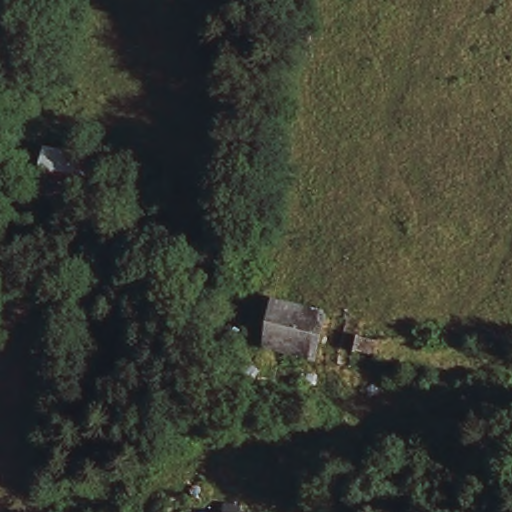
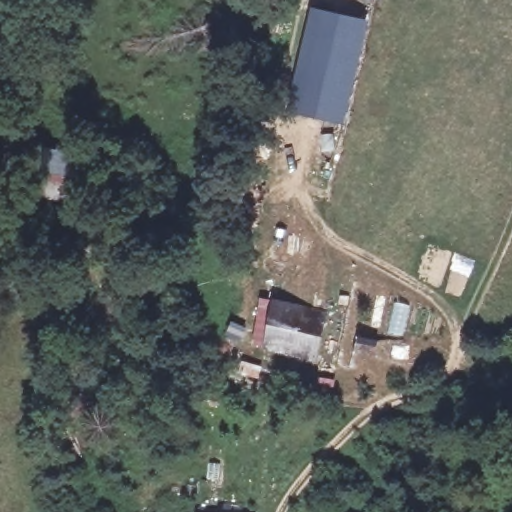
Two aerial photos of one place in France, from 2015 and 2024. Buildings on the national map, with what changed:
new [(308,6),(368,20),(344,124),(284,109),(308,6)]
unchanged [(86,157),(81,197),(46,192),(51,151),(86,157)]
unchanged [(278,299),(299,304),(285,351),(263,345),(278,299)]
unchanged [(349,318),(336,365),(285,351),(299,304),(349,318)]
unchanged [(383,328),(371,375),(336,365),(349,318),(383,328)]
demolished [(231,512),(217,512),(201,506),(213,472),(241,482),(231,512)]

